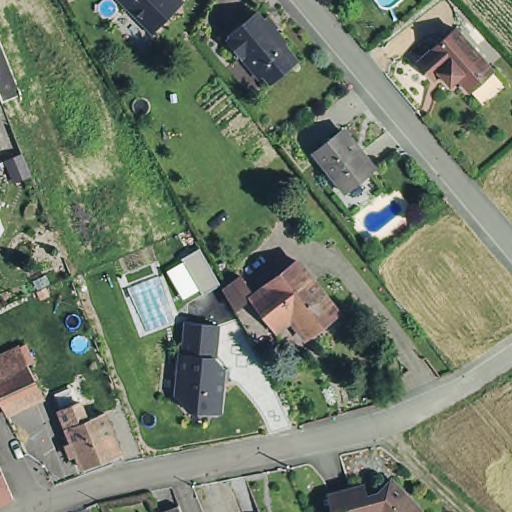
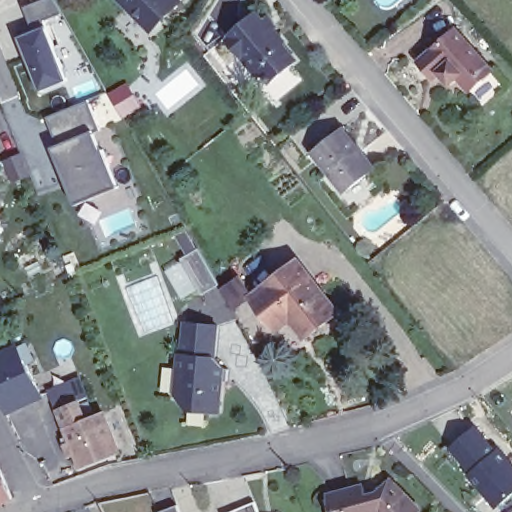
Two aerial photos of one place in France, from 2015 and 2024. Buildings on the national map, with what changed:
new [(19,37),(33,32),(22,7),(39,0),(52,0),(60,14),(42,20),(46,29),(67,81),(40,92),(19,37)]
unchanged [(153,31),(123,0),(180,0),(182,2),(153,31)]
unchanged [(229,42),(233,39),(232,37),(258,14),(266,22),(270,19),(279,30),(277,32),(288,45),(285,47),(299,62),(271,86),(265,77),(261,80),(243,59),(229,42)]
unchanged [(495,68),(473,89),(461,75),(453,82),(442,70),(437,75),(423,59),(459,27),(495,68)]
new [(138,110),(121,120),(107,96),(124,85),(138,110)]
new [(75,206),(52,148),(59,145),(46,117),(88,100),(100,130),(95,132),(119,187),(75,206)]
unchanged [(359,157),(362,154),(375,171),(345,194),(314,154),(340,133),(359,157)]
unchanged [(32,177),(15,184),(5,161),(24,153),(32,177)]
unchanged [(253,296),(258,293),(302,260),(342,310),(309,336),(294,316),(277,328),(253,296)]
unchanged [(243,274),(258,293),(253,296),(277,328),(257,345),(225,288),(243,274)]
unchanged [(215,356),(182,352),(186,320),(218,323),(215,356)]
unchanged [(0,360),(20,351),(27,366),(26,367),(42,398),(4,416),(0,408),(0,360)]
unchanged [(223,368),(227,369),(227,380),(222,380),(219,412),(187,409),(175,393),(180,352),(182,352),(215,356),(223,367),(223,368)]
unchanged [(65,443),(72,441),(58,408),(78,400),(85,418),(93,415),(102,412),(119,451),(108,456),(82,466),(77,452),(70,455),(65,443)]
new [(467,425),(512,471),(512,492),(490,511),(440,449),(467,425)]
unchanged [(0,470),(10,496),(0,500),(0,470)]
unchanged [(328,493),(365,483),(368,493),(377,491),(391,476),(423,507),(428,512),(333,512),(328,493)]
unchanged [(160,510),(177,503),(181,512),(161,512),(160,510)]

